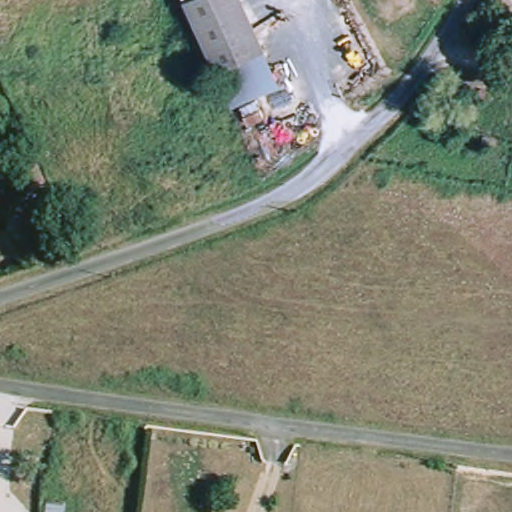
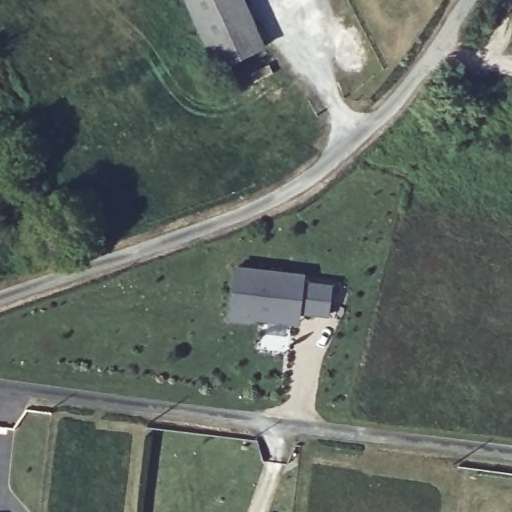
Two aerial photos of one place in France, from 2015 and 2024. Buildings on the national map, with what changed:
unchanged [(269,70),(228,90),(215,64),(185,0),(237,0),(269,70)]
unchanged [(45,189),(31,197),(24,181),(38,172),(45,189)]
new [(257,318),(243,317),(242,321),(224,319),(230,267),(298,275),(296,282),(325,286),(322,315),(293,312),(292,322),(257,318)]
demolished [(65,512),(47,512),(48,503),(65,506),(65,512)]

